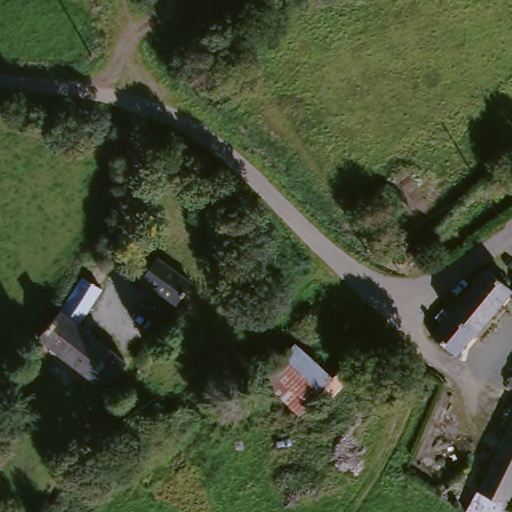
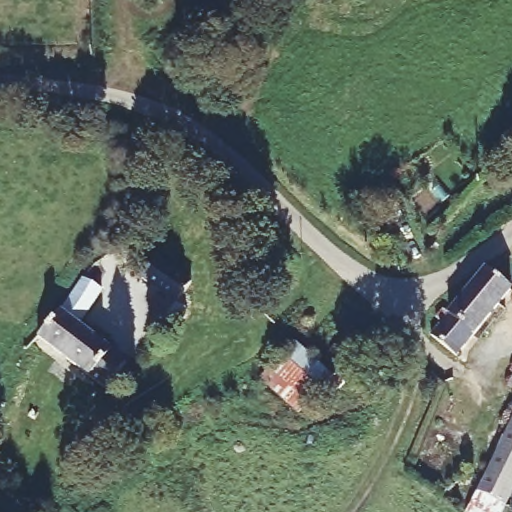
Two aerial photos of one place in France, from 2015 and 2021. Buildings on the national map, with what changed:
unchanged [(146,257),(185,286),(170,309),(129,277),(146,257)]
unchanged [(507,290),(456,354),(430,337),(483,274),(507,290)]
unchanged [(97,300),(79,336),(121,372),(103,395),(54,358),(36,345),(80,289),(97,300)]
unchanged [(333,380),(307,415),(268,384),(295,350),(333,380)]
unchanged [(512,382),(512,394),(506,391),(512,382)]
unchanged [(471,495),(512,422),(512,512),(500,512),(501,511),(495,507),(471,495)]

